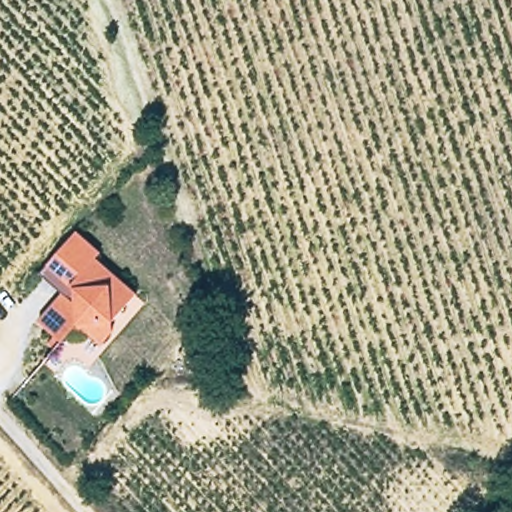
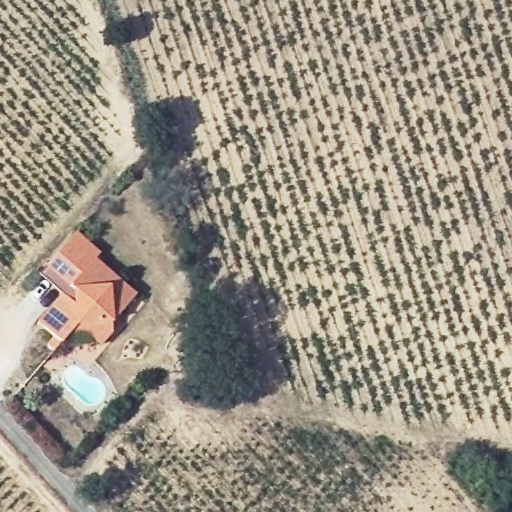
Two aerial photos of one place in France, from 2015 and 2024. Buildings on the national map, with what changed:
unchanged [(51,331),(58,324),(50,315),(42,308),(50,301),(68,285),(46,262),(78,231),(102,255),(98,261),(134,298),(108,323),(113,329),(100,342),(83,324),(87,320),(81,314),(63,329),(56,336),(51,331)]

